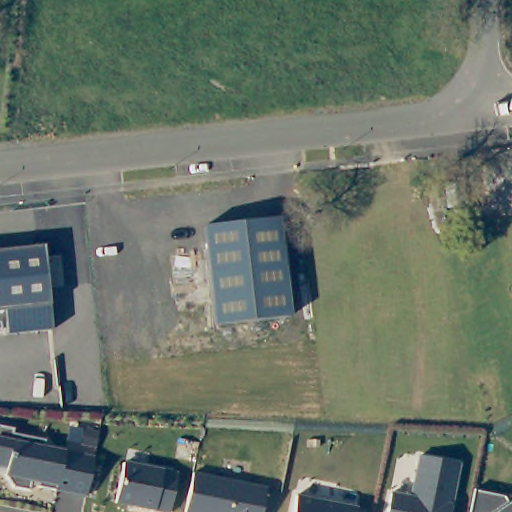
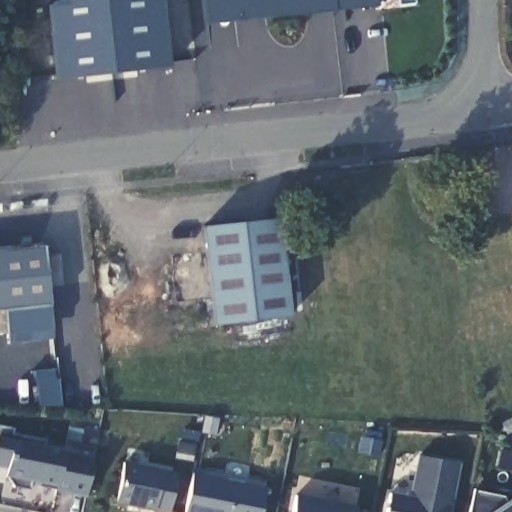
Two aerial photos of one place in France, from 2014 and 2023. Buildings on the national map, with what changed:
new [(53,80),(44,7),(58,0),(162,0),(170,67),(53,80)]
new [(206,25),(203,0),(377,0),(377,5),(206,25)]
unchanged [(216,325),(204,227),(280,217),(292,316),(216,325)]
unchanged [(7,333),(5,310),(0,310),(0,249),(45,245),(52,329),(7,333)]
demolished [(460,291),(463,291),(463,296),(476,295),(475,290),(490,288),(496,338),(464,342),(463,337),(461,337),(420,342),(417,315),(411,315),(410,297),(460,291)]
unchanged [(92,465),(87,496),(39,488),(40,483),(32,482),(30,492),(14,490),(5,477),(7,470),(0,469),(0,428),(12,430),(11,435),(45,441),(43,448),(94,457),(92,465)]
unchanged [(452,512),(389,512),(392,493),(411,496),(418,456),(460,462),(452,512)]
unchanged [(170,510),(116,501),(123,462),(176,471),(170,510)]
unchanged [(262,512),(186,512),(192,473),(266,486),(262,512)]
unchanged [(473,491),(505,497),(510,505),(512,504),(512,512),(469,512),(473,491)]
unchanged [(356,512),(297,512),(300,498),(357,508),(356,512)]

